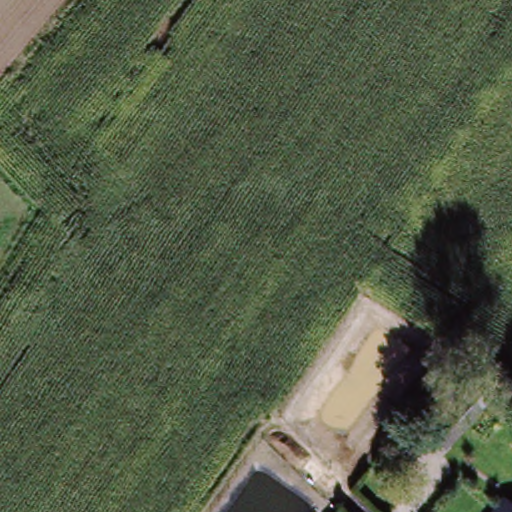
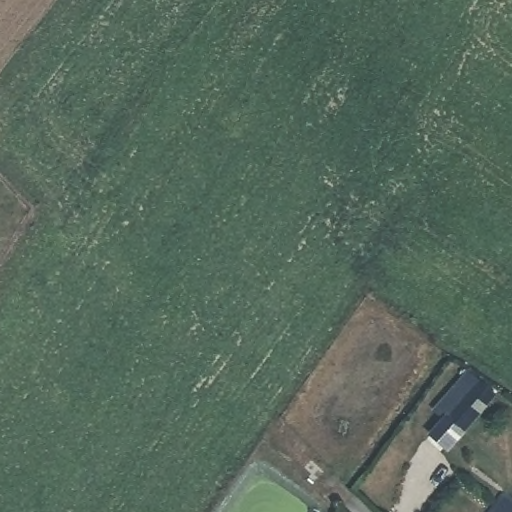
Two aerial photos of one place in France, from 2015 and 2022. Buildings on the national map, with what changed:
new [(431,408),(467,369),(498,395),(485,409),(467,394),(443,419),(431,408)]
new [(430,432),(467,394),(485,409),(447,448),(430,432)]
demolished [(437,420),(456,399),(467,408),(448,431),(437,420)]
unchanged [(512,504),(512,512),(496,512),(501,505),(505,499),(512,504)]

